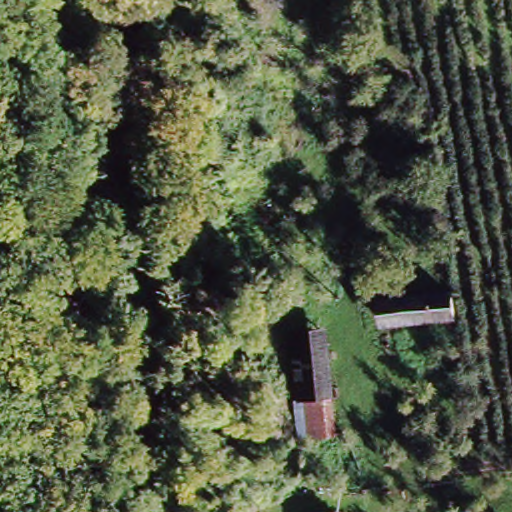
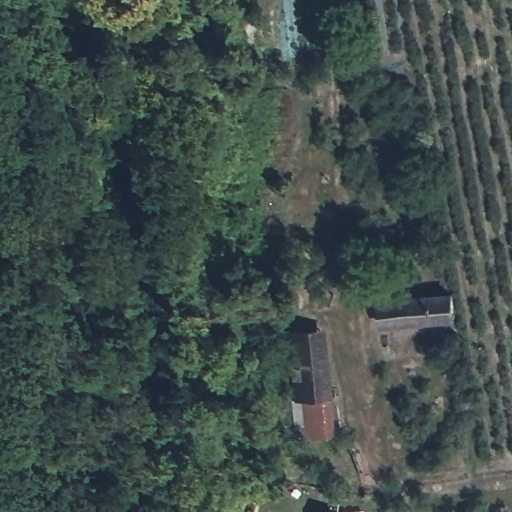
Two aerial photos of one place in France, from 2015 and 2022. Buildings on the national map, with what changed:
unchanged [(453,322),(383,329),(382,304),(452,298),(453,322)]
unchanged [(335,442),(298,444),(295,404),(302,403),(295,339),(327,337),(335,442)]

